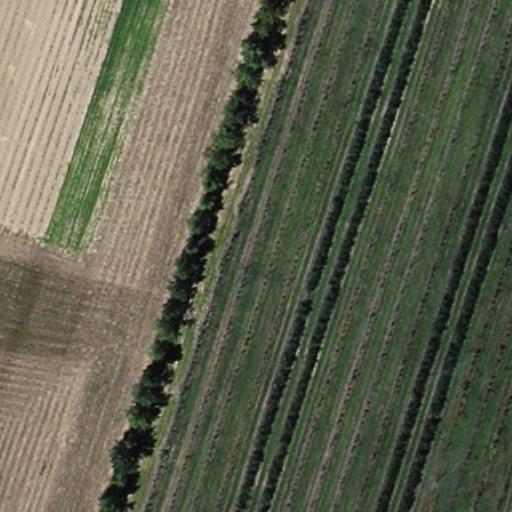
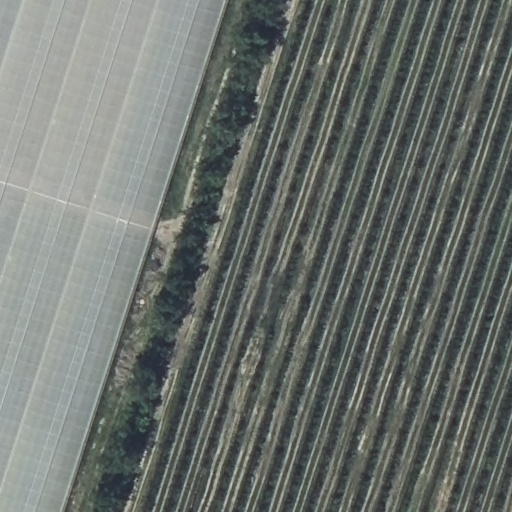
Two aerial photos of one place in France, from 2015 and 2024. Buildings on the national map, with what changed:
new [(67,512),(0,512),(0,0),(231,0),(67,512)]

